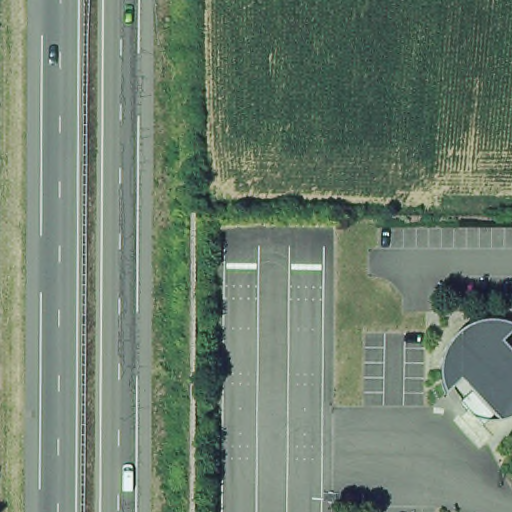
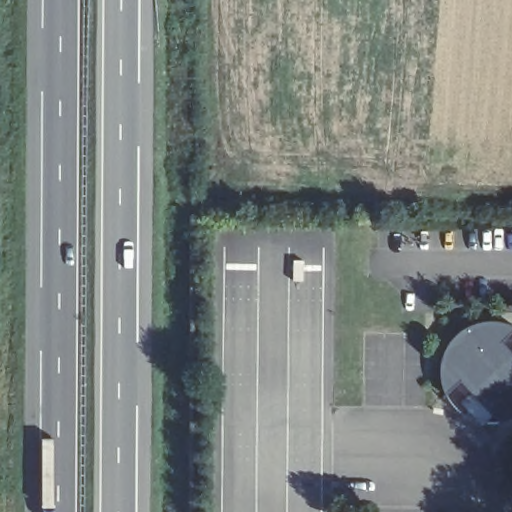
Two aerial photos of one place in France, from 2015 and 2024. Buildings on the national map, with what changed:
unchanged [(444,389),(445,390),(444,391),(442,387),(441,385),(440,381),(440,377),(438,374),(438,371),(438,367),(438,363),(439,360),(440,356),(440,352),(442,349),(443,346),(445,342),(447,339),(448,337),(450,333),(453,331),(455,328),(458,326),(462,324),(465,322),(467,321),(471,319),(475,317),(478,317),(482,316),(485,316),(488,316),(492,316),(496,316),(500,316),(503,317),(507,318),(510,320),(512,320),(512,325),(498,338),(502,342),(505,339),(510,345),(507,348),(509,351),(512,348),(512,412),(511,412),(508,414),(505,416),(501,417),(497,417),(493,417),(490,417),(487,417),(485,417),(485,413),(489,413),(494,413),(470,387),(458,376),(444,389)]

